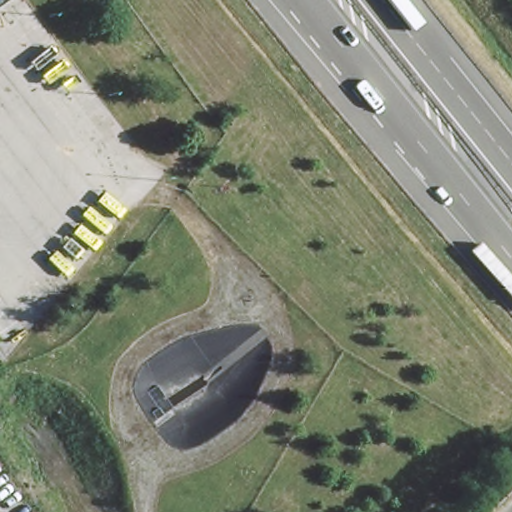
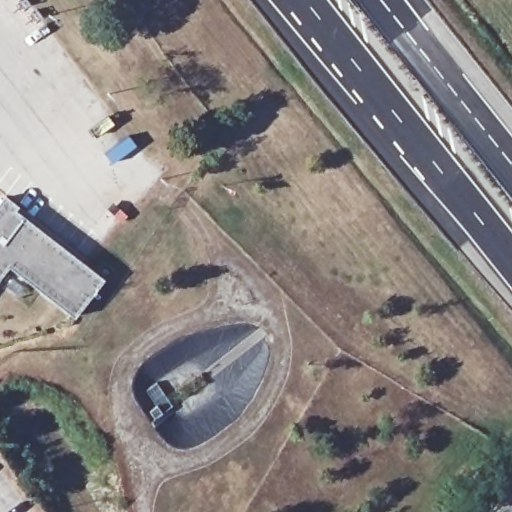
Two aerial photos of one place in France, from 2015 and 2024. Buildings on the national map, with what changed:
new [(3,194),(107,274),(77,314),(12,263),(0,277),(0,199),(3,194)]

